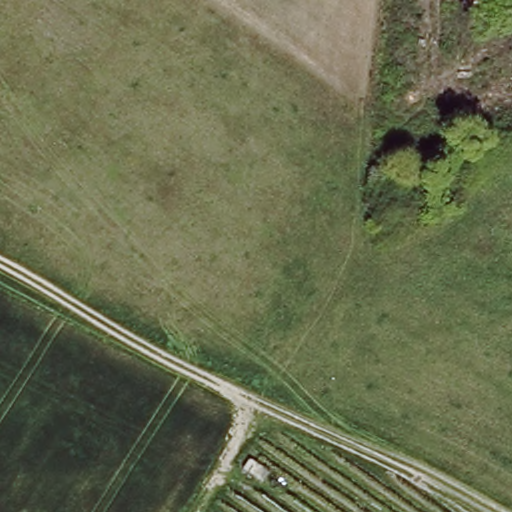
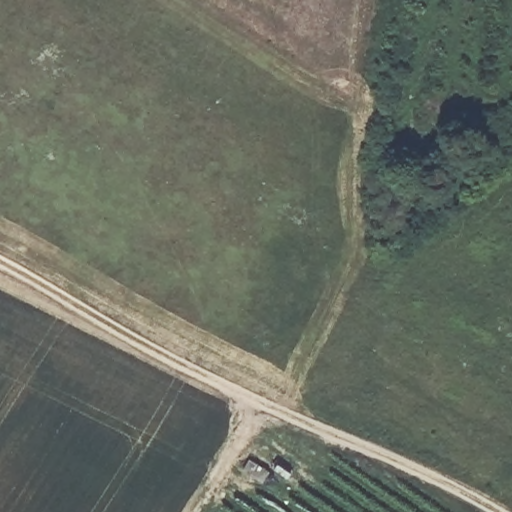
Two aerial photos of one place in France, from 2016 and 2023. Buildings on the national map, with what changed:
unchanged [(268,470),(262,480),(242,470),(250,458),(268,470)]

